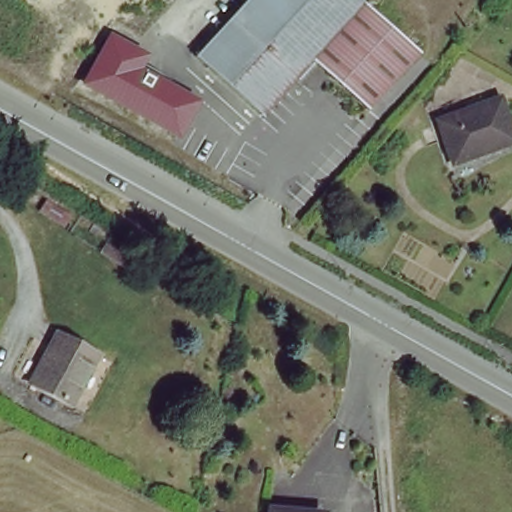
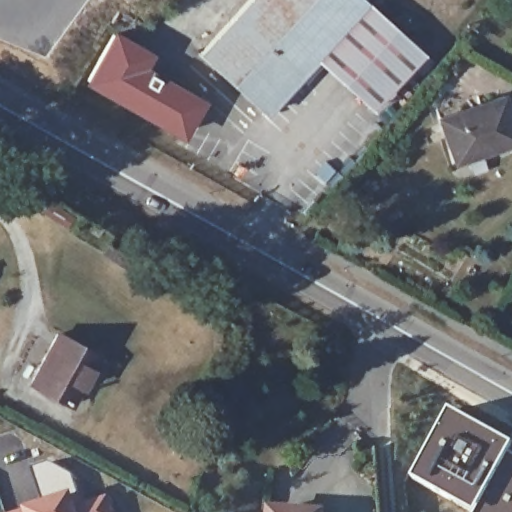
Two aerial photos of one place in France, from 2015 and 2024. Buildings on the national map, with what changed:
unchanged [(316,55),(263,112),(201,54),(251,0),(367,0),(316,55)]
unchanged [(367,0),(368,0),(423,51),(372,107),(316,55),(367,0)]
unchanged [(123,36),(150,51),(143,64),(202,97),(185,129),(92,79),(101,62),(118,33),(123,36)]
unchanged [(512,140),(452,159),(438,114),(503,93),(512,121),(512,140)]
unchanged [(70,403),(30,381),(57,332),(96,355),(70,403)]
new [(512,453),(510,456),(512,457),(512,512),(474,512),(415,478),(453,411),(512,444),(512,453)]
new [(50,458),(53,461),(73,474),(79,492),(40,503),(29,464),(50,458)]
new [(79,492),(85,512),(16,512),(40,503),(79,492)]
new [(118,512),(86,512),(82,505),(112,494),(118,512)]
unchanged [(275,512),(269,512),(269,511),(275,512)]

